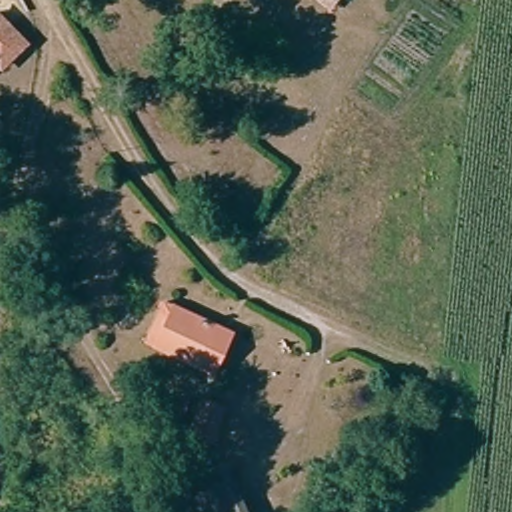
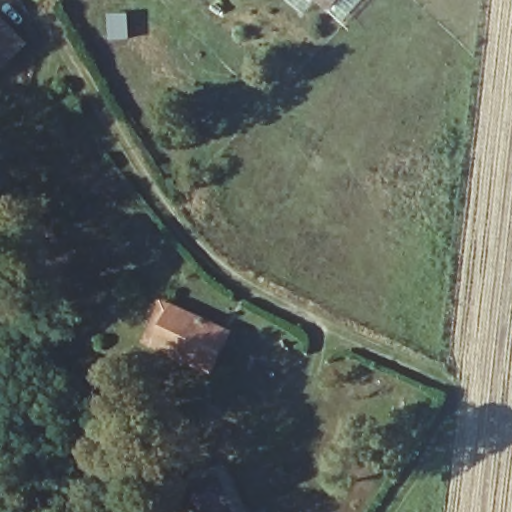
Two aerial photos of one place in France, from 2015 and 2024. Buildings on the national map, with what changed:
unchanged [(0,60),(0,29),(15,42),(0,60)]
unchanged [(210,370),(195,362),(151,340),(172,300),(214,321),(228,328),(210,370)]
unchanged [(212,405),(198,439),(175,430),(188,396),(212,405)]
unchanged [(200,475),(229,462),(243,495),(251,512),(216,512),(209,495),(200,475)]

